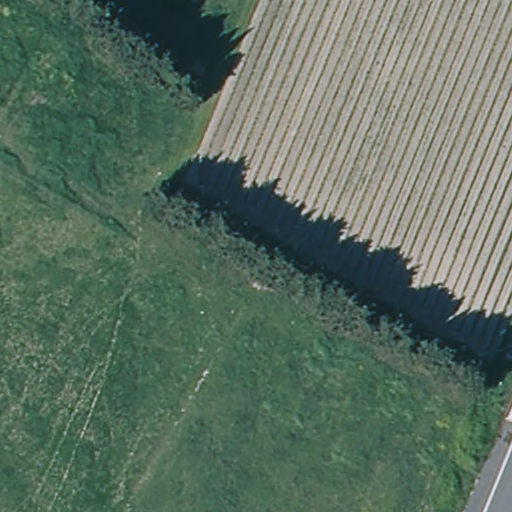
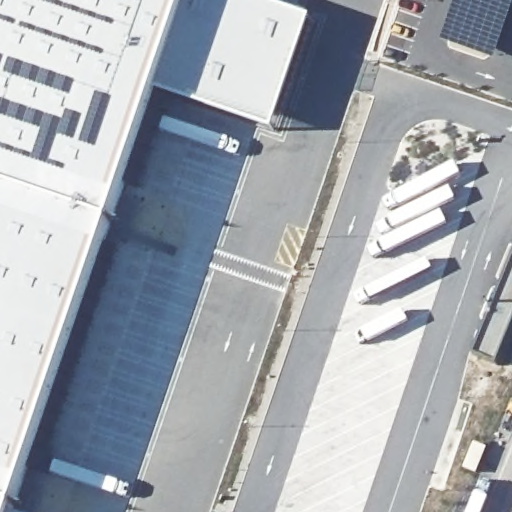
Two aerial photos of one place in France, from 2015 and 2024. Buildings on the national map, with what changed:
new [(274,131),(157,92),(14,512),(0,512),(0,0),(250,0),(312,19),(274,131)]

